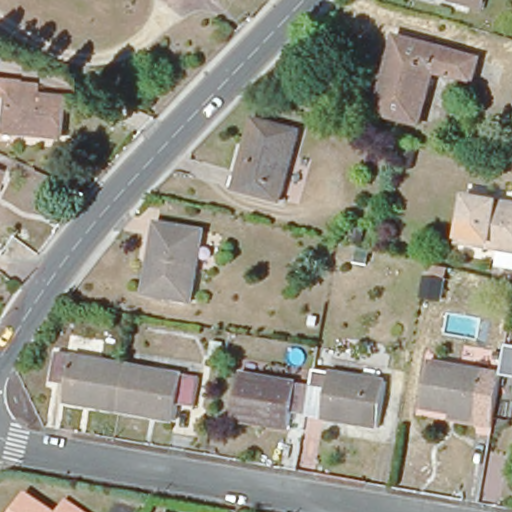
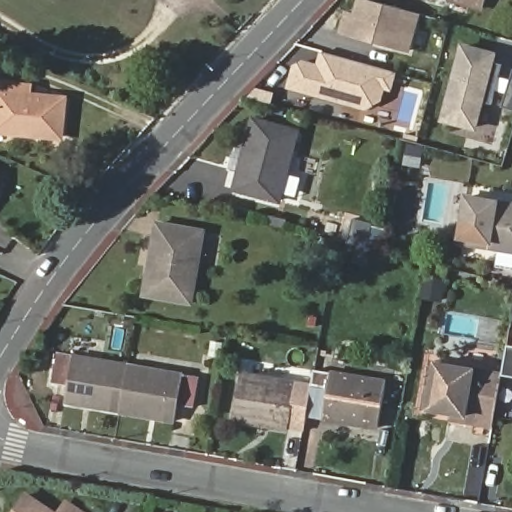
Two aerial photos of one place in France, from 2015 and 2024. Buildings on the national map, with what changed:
new [(339,32),(346,11),(353,13),(357,0),(367,0),(421,14),(411,53),(339,32)]
unchanged [(446,9),(447,3),(436,0),(487,0),(482,18),(446,9)]
demolished [(472,82),(434,72),(419,126),(374,112),(396,35),(479,58),(472,82)]
new [(440,121),(461,42),(497,52),(477,131),(440,121)]
new [(392,92),(385,91),(382,101),(367,110),(287,90),(293,64),(305,60),(319,63),(322,52),(397,73),(392,92)]
new [(512,75),(512,111),(501,107),(512,75)]
unchanged [(0,92),(64,98),(61,137),(0,131),(0,92)]
unchanged [(278,200),(235,187),(252,120),(296,132),(278,200)]
unchanged [(512,204),(512,251),(459,242),(467,197),(512,204)]
unchanged [(157,230),(202,236),(190,306),(146,298),(157,230)]
unchanged [(366,266),(353,263),(357,252),(368,255),(366,266)]
unchanged [(222,343),(219,358),(207,356),(210,342),(222,343)]
unchanged [(507,348),(512,349),(512,381),(502,378),(507,348)]
unchanged [(71,407),(75,390),(57,387),(63,356),(134,368),(125,417),(71,407)]
unchanged [(496,408),(493,425),(492,430),(473,427),(475,422),(423,413),(432,365),(502,378),(496,408)]
unchanged [(134,368),(202,382),(199,412),(181,408),(178,426),(125,417),(134,368)]
unchanged [(315,368),(332,371),(383,380),(375,427),(306,416),(312,385),(315,368)]
unchanged [(306,416),(291,413),(287,429),(236,420),(244,372),(312,385),(306,416)]
unchanged [(59,512),(19,512),(31,493),(59,512)]
unchanged [(92,512),(62,512),(72,497),(92,512)]

